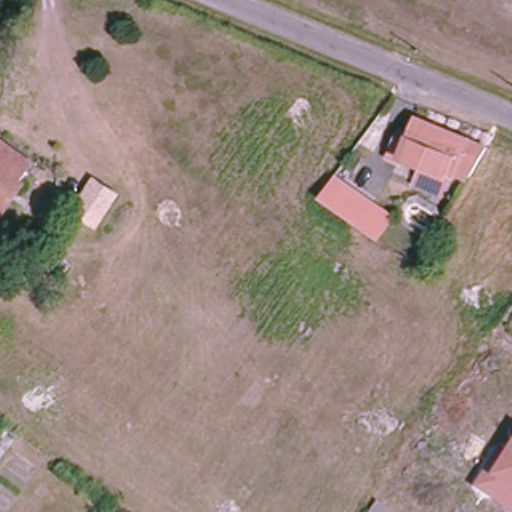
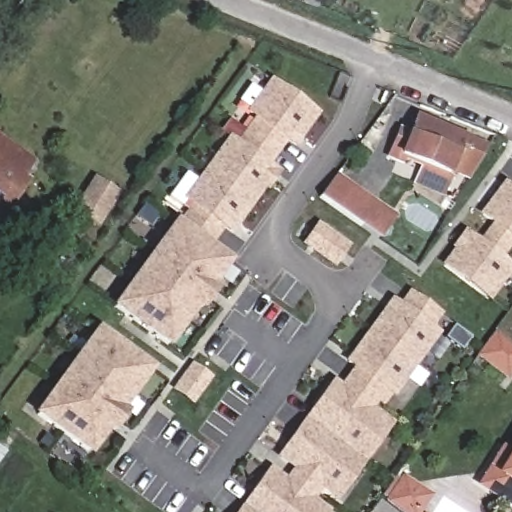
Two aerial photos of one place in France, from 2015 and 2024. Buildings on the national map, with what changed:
new [(294,149),(285,143),(271,165),(238,141),(253,120),(245,113),(270,78),(319,113),(294,149)]
unchanged [(415,183),(424,161),(401,153),(400,156),(388,151),(398,129),(409,133),(416,116),(477,142),(487,146),(467,180),(458,176),(451,173),(443,194),(415,183)]
new [(266,192),(263,190),(230,236),(223,231),(212,247),(178,222),(190,206),(181,199),(228,133),(238,141),(271,165),(280,171),(266,192)]
unchanged [(28,172),(23,178),(26,181),(6,210),(2,207),(0,210),(0,142),(32,164),(28,172)]
new [(97,229),(70,212),(93,175),(120,193),(97,229)]
new [(504,181),(512,186),(512,240),(478,215),(504,181)]
unchanged [(343,183),(383,211),(371,230),(329,202),(343,183)]
new [(214,286),(218,289),(201,312),(197,310),(168,349),(110,307),(175,220),(178,222),(212,247),(231,261),(214,286)]
new [(316,226),(346,247),(332,265),(303,244),(316,226)]
new [(439,266),(466,231),(512,264),(512,271),(488,303),(439,266)]
new [(385,393),(352,369),(343,362),(391,298),(399,304),(409,290),(442,314),(432,328),(440,333),(393,399),(385,393)]
new [(124,410),(128,412),(112,435),(108,432),(89,458),(31,416),(96,326),(153,368),(124,410)]
new [(507,380),(476,358),(495,333),(512,345),(512,374),(507,380)]
new [(191,367),(206,378),(189,402),(174,390),(191,367)]
new [(268,466),(285,478),(291,469),(274,457),(330,379),(340,385),(352,369),(385,393),(374,409),(393,423),(337,501),(321,491),(315,500),(330,510),(329,512),(235,512),(268,466)]
unchanged [(0,466),(0,448),(8,454),(0,466)]
new [(475,488),(496,454),(506,458),(512,449),(512,511),(475,488)]
new [(420,512),(398,512),(383,502),(401,474),(432,494),(420,512)]
unchanged [(392,512),(374,512),(380,503),(392,512)]

